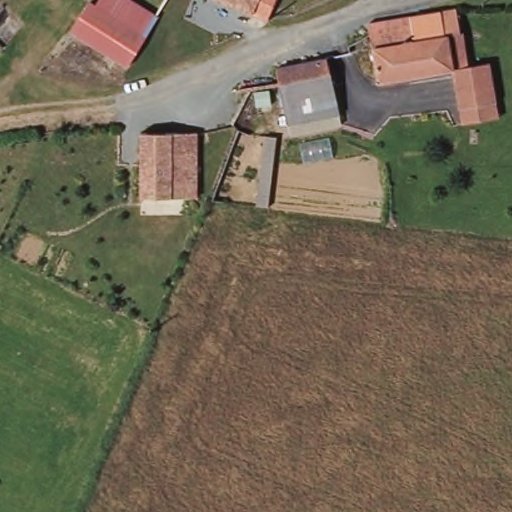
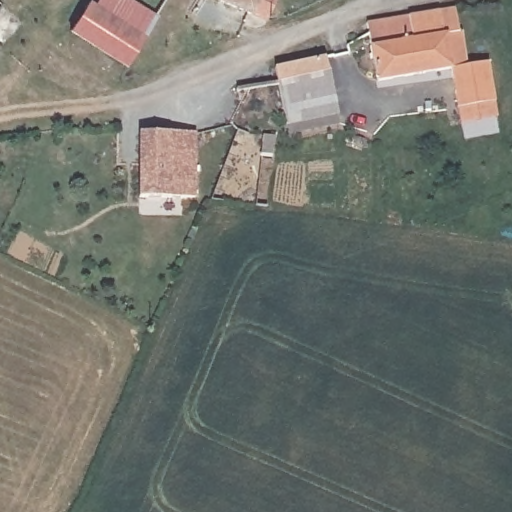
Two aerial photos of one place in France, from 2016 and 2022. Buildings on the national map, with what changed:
unchanged [(89,1),(94,4),(96,0),(132,0),(158,15),(148,34),(130,64),(70,31),(89,1)]
unchanged [(270,19),(259,14),(223,0),(279,0),(270,19)]
unchanged [(461,124),(458,109),(453,70),(374,87),(366,46),(364,29),(450,13),(454,34),(464,34),(469,63),(491,62),(499,102),(502,117),(461,124)]
unchanged [(284,94),(279,67),(325,59),(329,82),(337,117),(290,126),(284,98),(284,94)]
unchanged [(228,79),(279,67),(282,84),(258,89),(247,91),(231,94),(228,79)]
unchanged [(136,138),(136,132),(198,133),(199,197),(138,198),(135,183),(115,183),(114,138),(136,138)]
unchanged [(263,202),(272,134),(284,135),(275,204),(263,202)]

